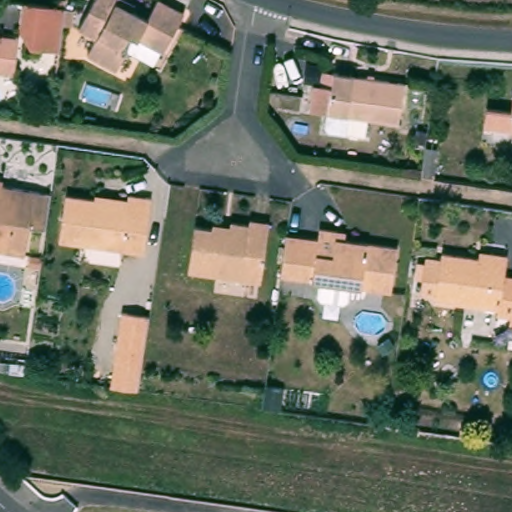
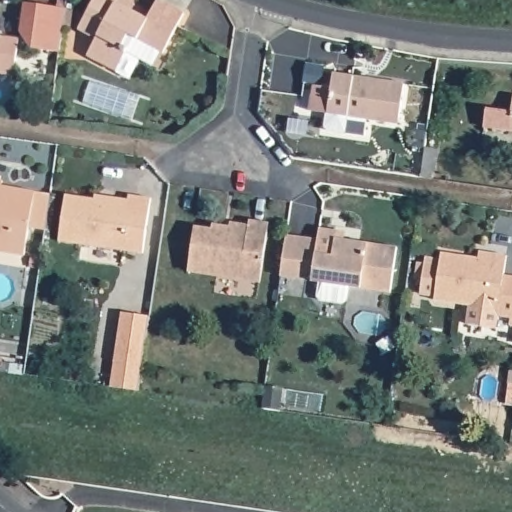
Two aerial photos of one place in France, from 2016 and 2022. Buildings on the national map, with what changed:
unchanged [(159,0),(181,13),(160,52),(126,34),(121,44),(125,47),(113,70),(85,56),(93,39),(76,29),(90,0),(123,0),(130,4),(128,10),(144,19),(154,0),(159,0)]
unchanged [(57,53),(29,49),(17,33),(21,4),(64,10),(57,53)]
unchanged [(16,40),(11,76),(0,74),(0,37),(16,40)]
unchanged [(407,86),(400,125),(368,120),(366,138),(329,132),(327,128),(329,114),(332,91),(323,89),(325,74),(407,86)]
unchanged [(483,105),(508,109),(510,93),(512,93),(512,128),(480,124),(483,105)]
unchanged [(25,229),(20,257),(0,254),(0,188),(46,195),(40,231),(25,229)]
unchanged [(123,205),(125,196),(145,199),(138,253),(54,242),(60,196),(123,205)]
unchanged [(324,225),(342,228),(348,229),(348,233),(347,236),(400,244),(393,289),(369,285),(367,299),(363,302),(341,299),(338,295),(340,281),(316,277),(316,276),(285,271),(291,231),(322,236),(324,225)]
unchanged [(247,232),(249,226),(267,229),(258,288),(188,278),(194,232),(211,235),(212,230),(229,233),(229,229),(247,232)]
unchanged [(497,315),(434,305),(441,259),(477,264),(478,258),(489,260),(506,262),(497,315)]
unchanged [(149,302),(138,376),(111,372),(122,298),(149,302)]

